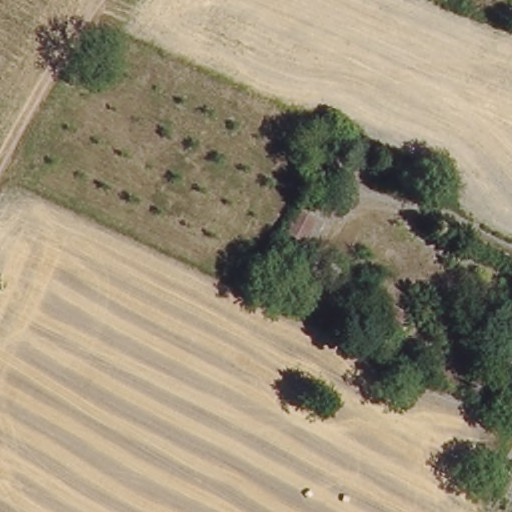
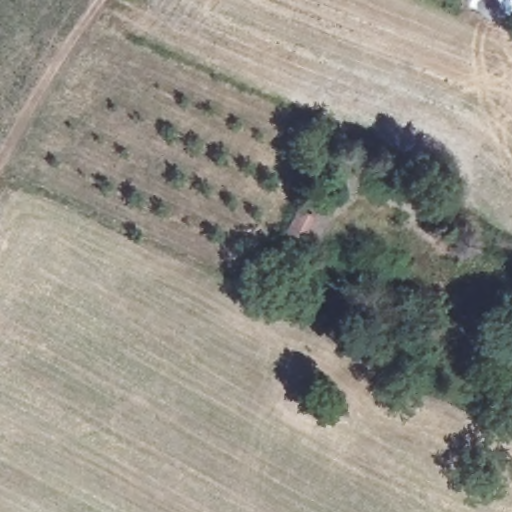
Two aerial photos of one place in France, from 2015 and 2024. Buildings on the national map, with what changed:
unchanged [(305,248),(276,235),(292,201),(320,216),(305,248)]

